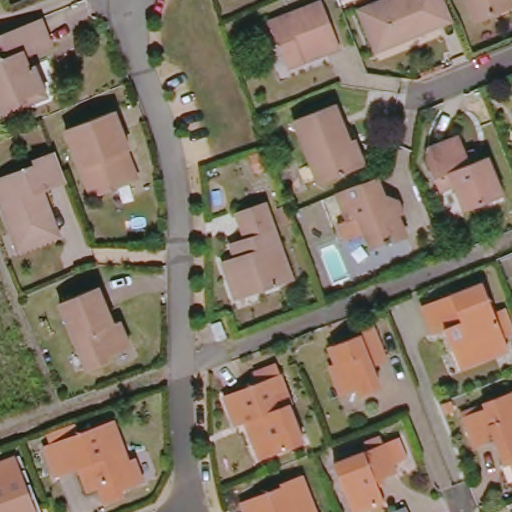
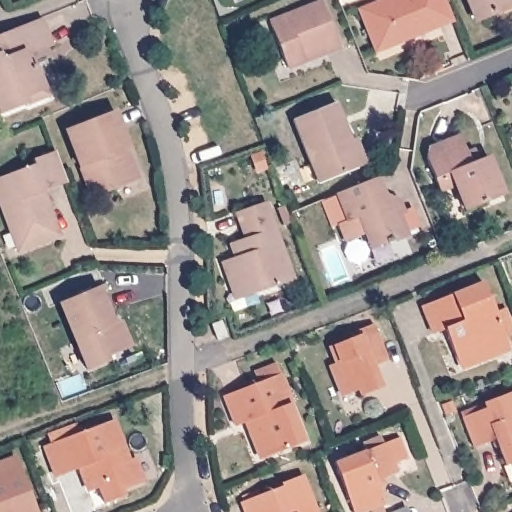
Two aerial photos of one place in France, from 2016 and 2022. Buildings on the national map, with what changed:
unchanged [(440,31),(377,56),(360,14),(395,0),(443,0),(450,18),(453,25),(440,31)]
unchanged [(480,21),(471,0),(512,0),(512,8),(480,21)]
unchanged [(288,67),(270,22),(322,1),(340,46),(327,52),(305,61),(288,67)]
unchanged [(56,45),(30,55),(33,66),(38,64),(48,89),(51,96),(30,105),(5,114),(0,116),(0,36),(45,18),(56,45)]
unchanged [(294,120),(335,103),(350,140),(355,138),(365,164),(319,182),(294,120)]
unchanged [(134,149),(127,152),(138,182),(97,198),(70,129),(118,110),(134,149)]
unchanged [(502,195),(465,210),(455,184),(440,190),(427,158),(428,149),(460,136),(467,153),(475,150),(478,160),(487,156),(502,195)]
unchanged [(18,250),(0,200),(0,177),(35,164),(33,159),(47,154),(54,151),(55,151),(67,182),(44,191),(48,203),(60,235),(38,243),(18,250)]
unchanged [(404,221),(412,241),(377,254),(370,237),(350,245),(344,229),(352,226),(342,199),(382,183),(393,210),(405,205),(411,218),(404,221)]
unchanged [(238,294),(227,262),(240,257),(237,248),(243,246),(242,241),(250,238),(240,212),(270,202),(297,280),(260,293),(240,300),(238,294)]
unchanged [(508,344),(465,360),(458,344),(453,346),(447,331),(453,329),(450,321),(433,328),(422,300),(482,277),(508,344)]
unchanged [(117,320),(127,346),(120,350),(102,357),(105,361),(85,369),(57,302),(90,288),(105,325),(117,320)]
unchanged [(226,336),(217,340),(212,325),(220,321),(226,336)]
unchanged [(372,366),(380,388),(362,395),(359,389),(343,396),(331,365),(335,363),(329,347),(360,335),(358,330),(374,324),(388,360),(372,366)]
unchanged [(288,405),(302,442),(265,456),(260,441),(254,443),(248,428),(253,427),(250,420),(235,426),(223,396),(257,383),(253,373),(277,364),(280,374),(292,404),(288,405)]
unchanged [(502,439),(479,448),(467,417),(491,408),(489,403),(512,395),(512,465),(502,439)]
unchanged [(123,466),(128,464),(137,488),(115,496),(117,502),(98,509),(92,493),(83,496),(75,472),(50,481),(39,451),(108,425),(123,466)]
unchanged [(407,458),(393,463),(397,471),(376,480),(385,501),(358,512),(353,512),(333,463),(365,450),(362,443),(380,436),(383,443),(385,442),(400,437),(407,458)]
unchanged [(0,512),(0,464),(15,458),(35,512),(0,512)]
unchanged [(280,487),(280,484),(301,475),(315,512),(245,512),(242,502),(280,487)]
unchanged [(394,512),(404,507),(406,512),(394,512)]

